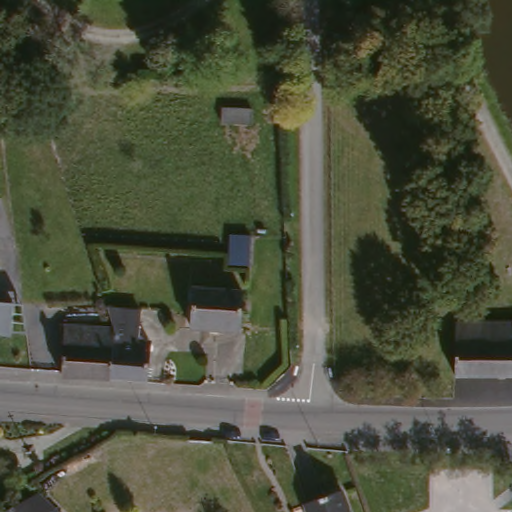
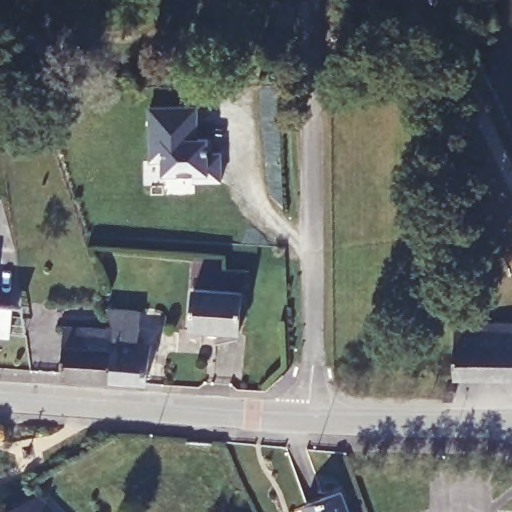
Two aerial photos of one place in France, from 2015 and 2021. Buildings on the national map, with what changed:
unchanged [(248,89),(248,109),(216,108),(216,90),(248,89)]
new [(197,104),(199,136),(210,136),(210,150),(223,150),(225,177),(197,178),(197,170),(167,171),(166,157),(154,159),(151,105),(197,104)]
demolished [(255,239),(253,271),(230,270),(230,236),(255,239)]
unchanged [(241,290),(237,341),(189,340),(198,287),(241,290)]
unchanged [(13,335),(0,333),(0,305),(15,306),(13,335)]
unchanged [(111,334),(104,313),(137,316),(135,346),(147,347),(146,353),(144,388),(107,385),(107,383),(110,353),(111,334)]
unchanged [(455,386),(455,329),(512,327),(512,384),(455,386)]
unchanged [(110,353),(107,383),(107,385),(59,381),(59,377),(61,335),(111,334),(110,353)]
unchanged [(328,495),(346,488),(354,512),(315,512),(311,500),(328,495)]
unchanged [(29,501),(39,496),(52,512),(10,512),(29,501)]

